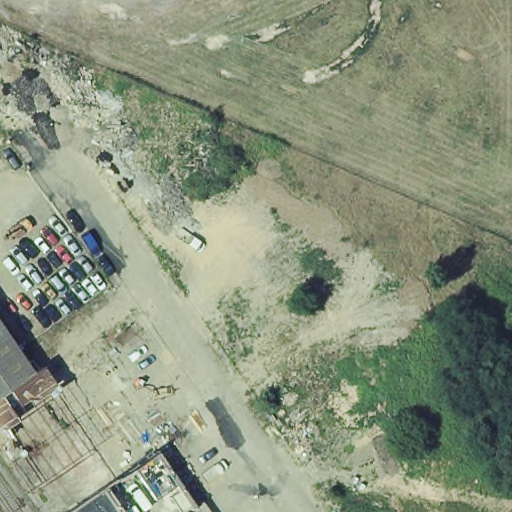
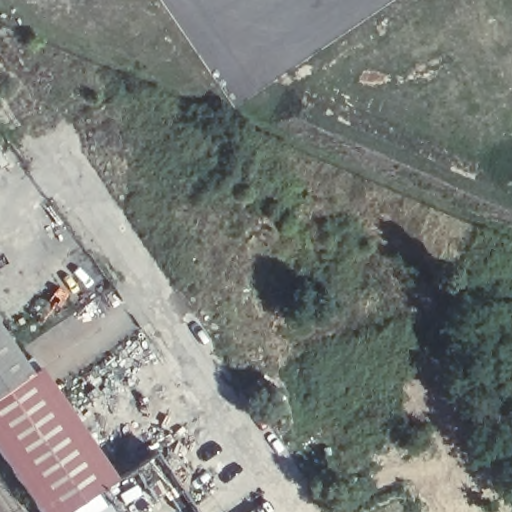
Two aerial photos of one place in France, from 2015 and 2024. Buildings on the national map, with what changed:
unchanged [(30,375),(0,396),(0,333),(30,375)]
new [(30,375),(41,367),(116,478),(103,487),(118,512),(40,512),(0,455),(0,396),(30,375)]

